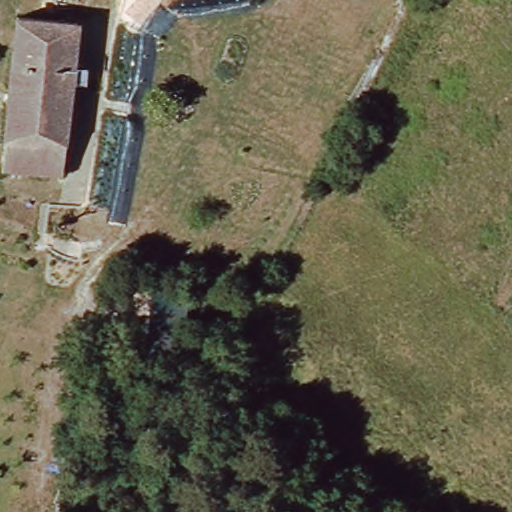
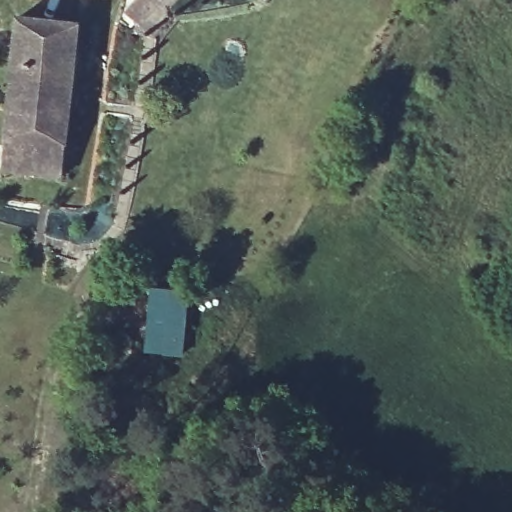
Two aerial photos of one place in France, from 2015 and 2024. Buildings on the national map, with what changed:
demolished [(61,2),(61,0),(81,0),(80,3),(61,2)]
new [(158,0),(140,21),(128,11),(138,0),(158,0)]
unchanged [(4,169),(15,23),(76,28),(65,174),(4,169)]
new [(153,291),(186,293),(183,355),(148,352),(153,291)]

